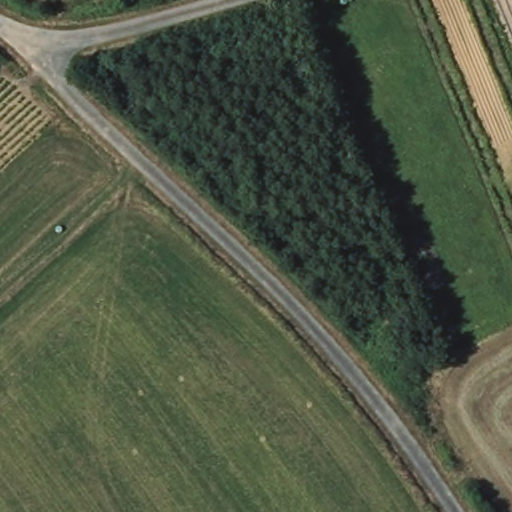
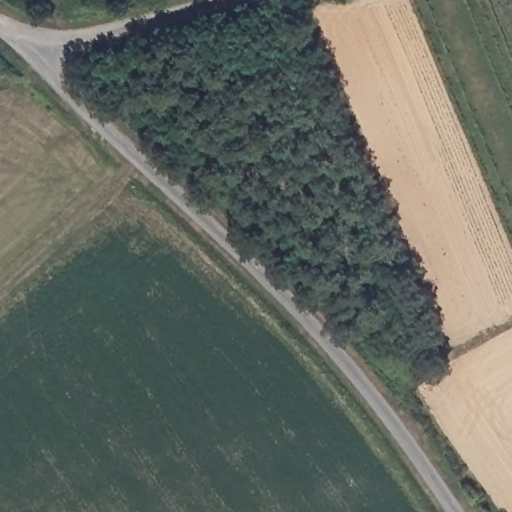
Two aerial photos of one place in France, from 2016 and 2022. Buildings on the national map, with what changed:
unchanged [(422,373),(430,389),(411,397),(403,384),(422,373)]

